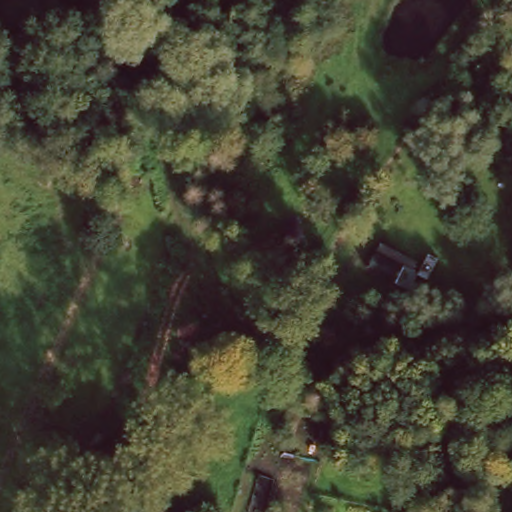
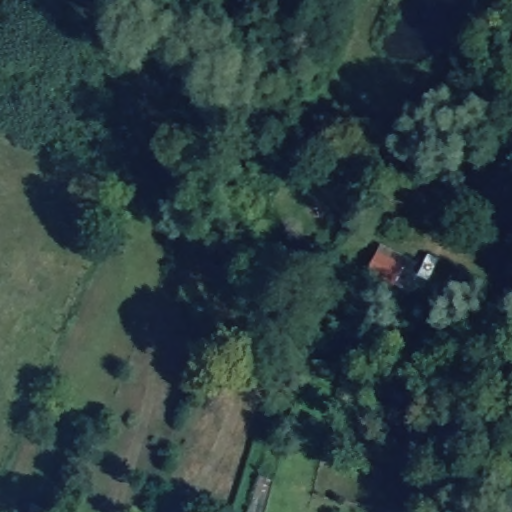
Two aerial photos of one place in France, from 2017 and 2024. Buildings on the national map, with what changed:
unchanged [(273,232),(283,240),(265,263),(256,257),(273,232)]
unchanged [(384,250),(412,261),(408,269),(417,271),(424,255),(441,258),(431,282),(417,280),(410,289),(396,287),(370,273),(384,250)]

